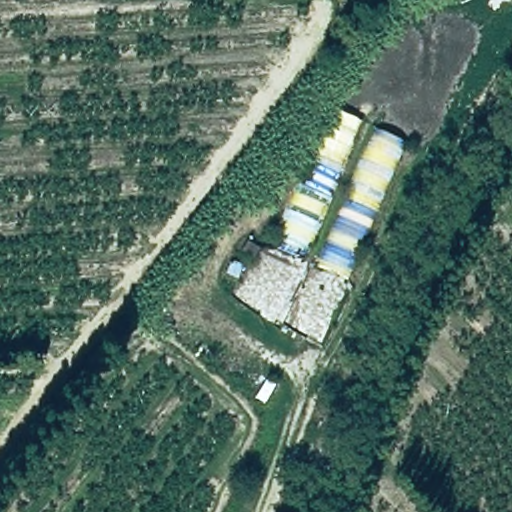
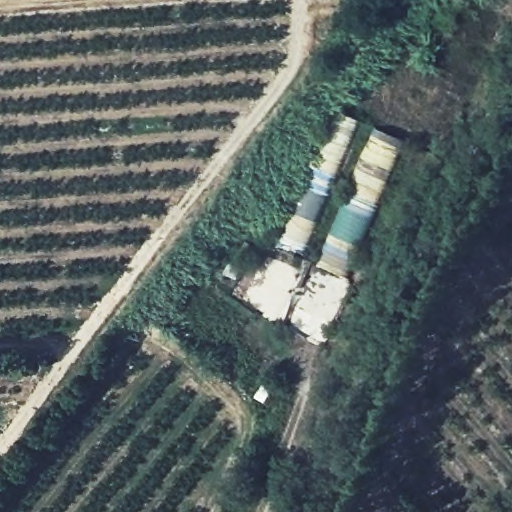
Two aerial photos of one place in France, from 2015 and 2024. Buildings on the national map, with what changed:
unchanged [(263,242),(325,102),(408,138),(350,281),(263,242)]

